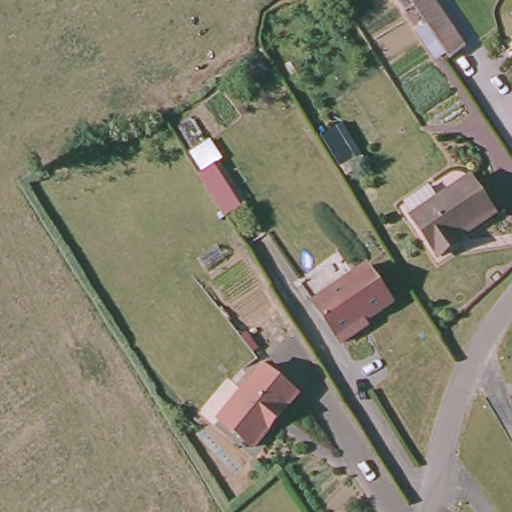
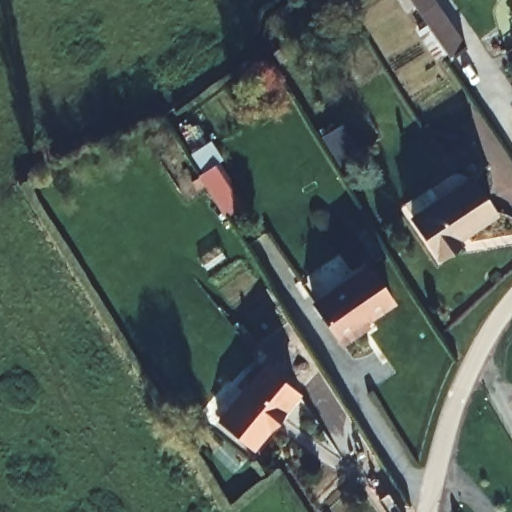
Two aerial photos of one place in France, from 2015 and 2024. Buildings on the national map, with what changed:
unchanged [(447,66),(407,0),(432,0),(465,55),(447,66)]
unchanged [(217,227),(216,227),(190,185),(191,184),(210,173),(235,217),(217,227)]
unchanged [(461,242),(464,249),(440,262),(414,220),(415,219),(407,206),(433,190),(441,203),(475,183),(497,221),(461,242)]
unchanged [(392,305),(355,327),(360,333),(338,346),(311,299),(369,266),(392,305)]
unchanged [(207,432),(261,387),(290,421),(235,465),(207,432)]

